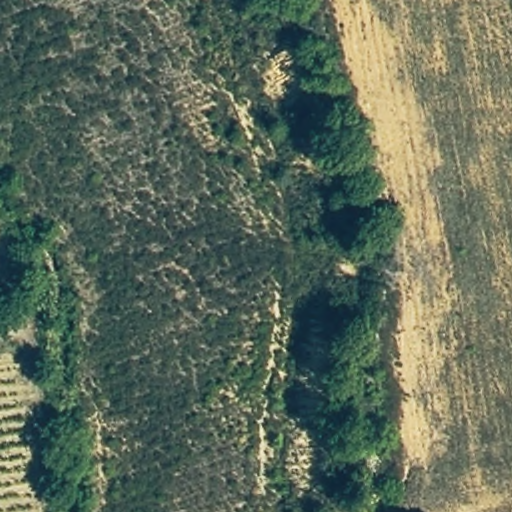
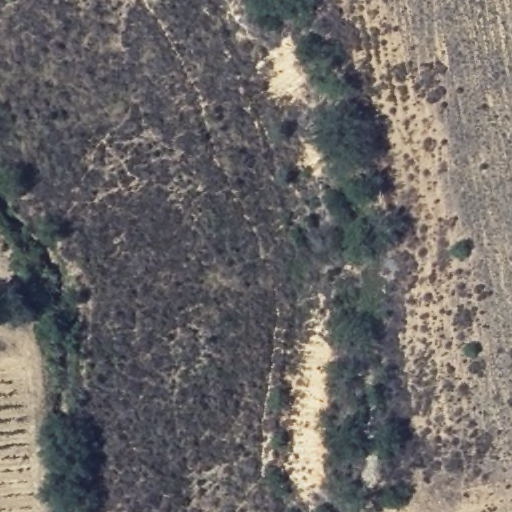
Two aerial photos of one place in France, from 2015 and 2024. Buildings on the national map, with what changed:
[]

